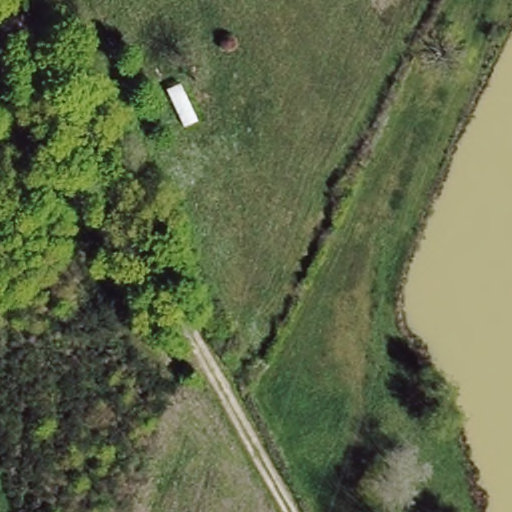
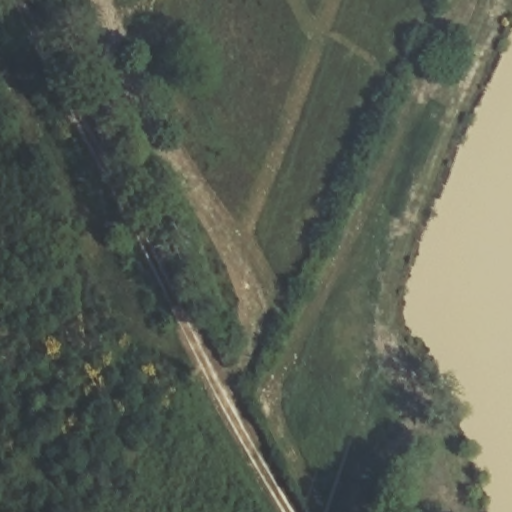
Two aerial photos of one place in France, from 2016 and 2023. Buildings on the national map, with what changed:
unchanged [(187,81),(206,119),(184,125),(163,90),(187,81)]

